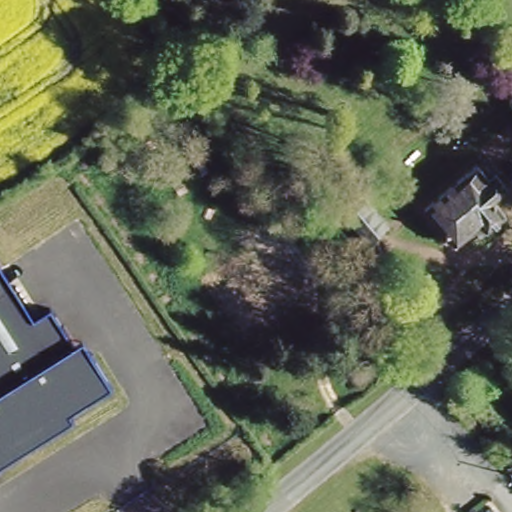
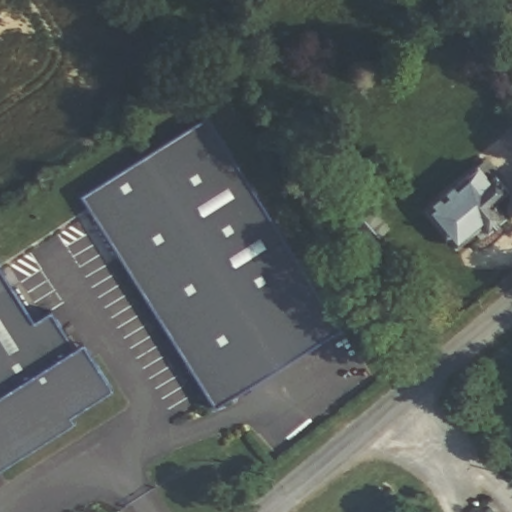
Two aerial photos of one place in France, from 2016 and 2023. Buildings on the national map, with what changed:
new [(341,327),(216,407),(83,195),(208,116),(341,327)]
unchanged [(485,161),(510,192),(495,205),(506,219),(487,235),(481,228),(456,250),(425,213),(485,161)]
unchanged [(390,225),(371,240),(351,215),(370,200),(390,225)]
demolished [(268,259),(286,285),(232,321),(215,295),(268,259)]
unchanged [(11,287),(0,295),(0,269),(11,287)]
unchanged [(11,287),(33,321),(50,310),(74,345),(81,340),(111,385),(67,412),(73,420),(0,466),(0,295),(11,287)]

